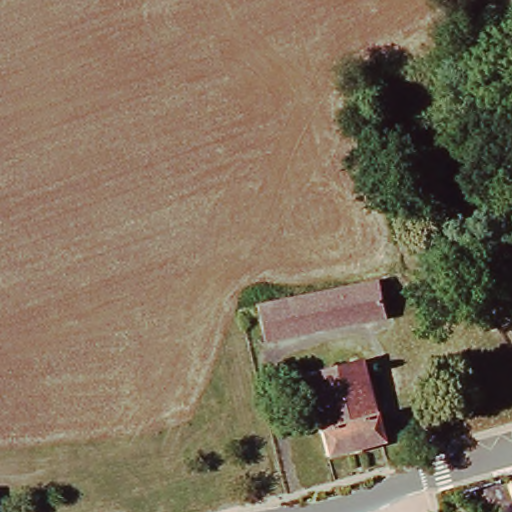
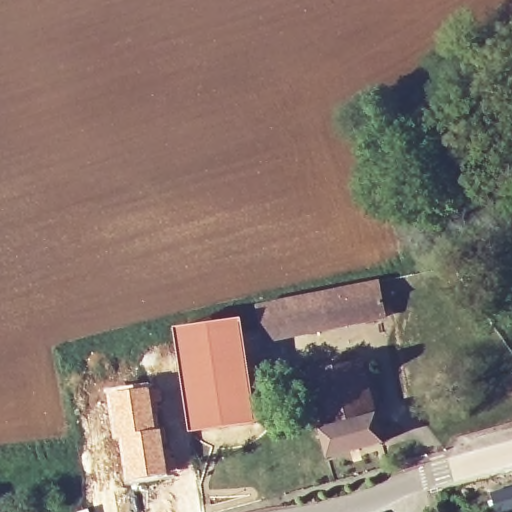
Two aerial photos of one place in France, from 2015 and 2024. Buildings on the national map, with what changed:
unchanged [(278,342),(271,314),(381,288),(388,316),(278,342)]
new [(240,317),(257,423),(189,433),(173,325),(240,317)]
unchanged [(366,366),(388,444),(339,457),(318,378),(366,366)]
new [(150,384),(158,430),(161,429),(169,475),(124,483),(116,438),(113,439),(105,389),(150,384)]

